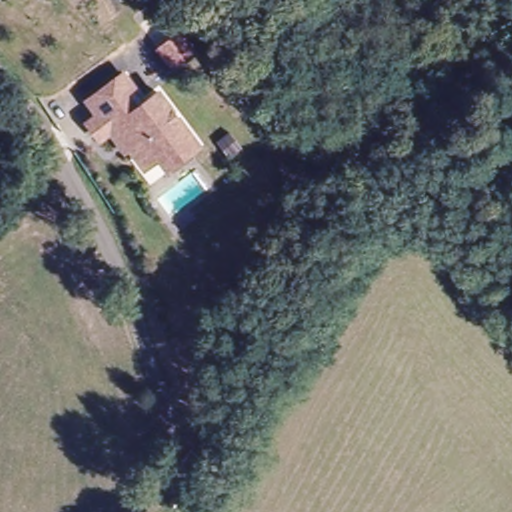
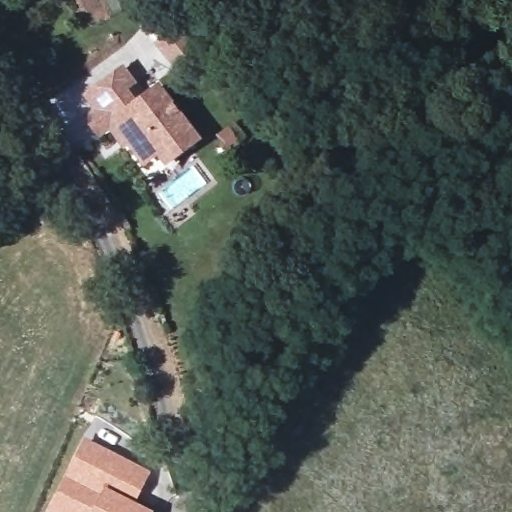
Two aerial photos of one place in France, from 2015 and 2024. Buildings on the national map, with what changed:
unchanged [(155,46),(180,23),(198,46),(173,68),(155,46)]
unchanged [(138,161),(108,124),(96,133),(85,118),(92,112),(80,98),(114,71),(126,86),(137,99),(150,88),(180,126),(190,136),(160,161),(151,150),(138,161)]
unchanged [(210,135),(221,126),(233,140),(222,150),(210,135)]
new [(87,440),(146,472),(130,503),(120,497),(126,485),(77,459),(87,440)]
new [(77,459),(126,485),(120,497),(130,503),(135,506),(148,512),(50,512),(77,459)]

